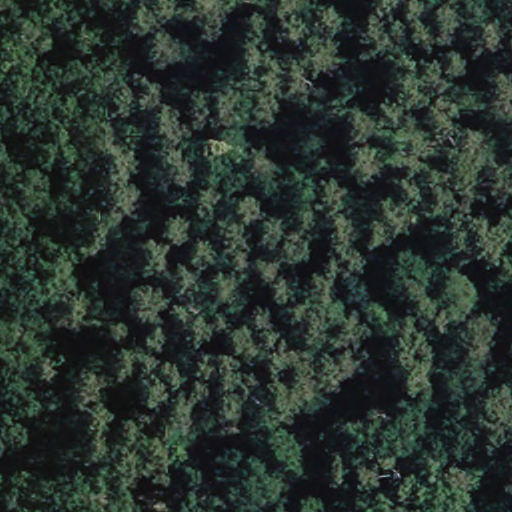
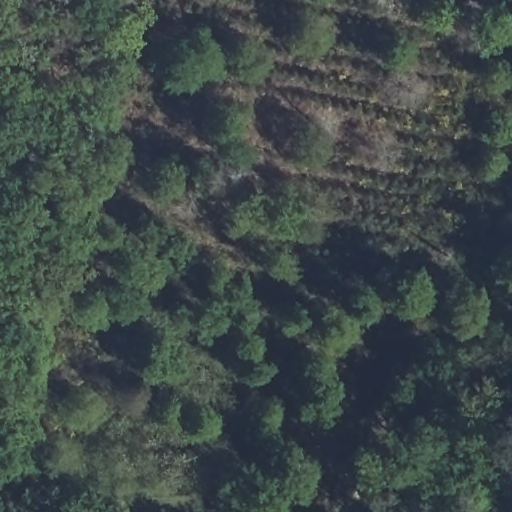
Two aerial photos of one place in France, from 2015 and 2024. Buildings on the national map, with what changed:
[]

